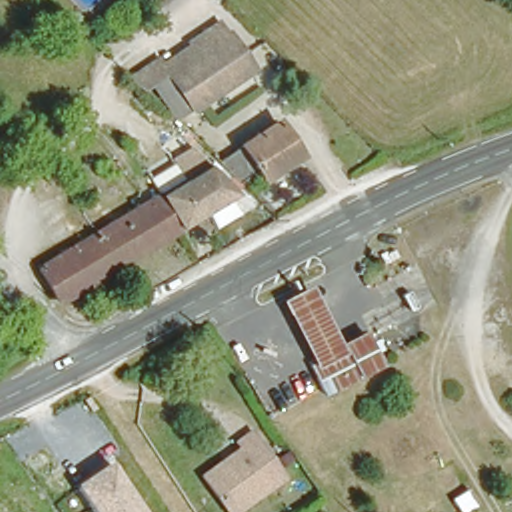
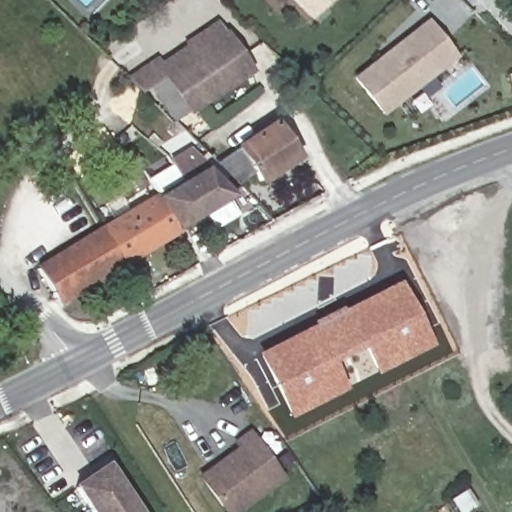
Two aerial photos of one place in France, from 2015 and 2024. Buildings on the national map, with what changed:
new [(290,0),(332,0),(310,21),(290,0)]
new [(382,117),(351,78),(427,18),(458,58),(382,117)]
unchanged [(192,113),(169,75),(200,54),(191,42),(204,33),(220,21),(228,34),(254,72),(192,113)]
unchanged [(175,125),(145,75),(191,42),(200,54),(169,75),(192,113),(175,125)]
unchanged [(277,115),(299,148),(241,184),(240,183),(215,157),(277,115)]
unchanged [(235,187),(227,192),(236,207),(215,220),(205,205),(178,222),(157,188),(156,185),(147,170),(170,156),(180,174),(201,161),(207,157),(235,187)]
unchanged [(178,222),(59,294),(38,262),(157,188),(178,222)]
new [(347,390),(290,419),(256,354),(400,280),(431,342),(376,370),(363,348),(333,363),(347,390)]
demolished [(323,392),(318,384),(310,364),(310,360),(338,347),(335,343),(341,340),(362,330),(372,352),(379,366),(323,392)]
unchanged [(280,477),(266,486),(226,512),(200,475),(214,466),(236,453),(230,444),(248,433),(255,441),(266,459),(280,477)]
unchanged [(142,512),(91,512),(73,484),(110,462),(142,512)]

